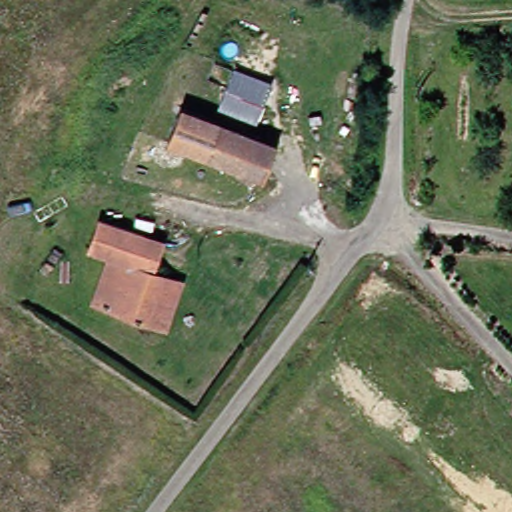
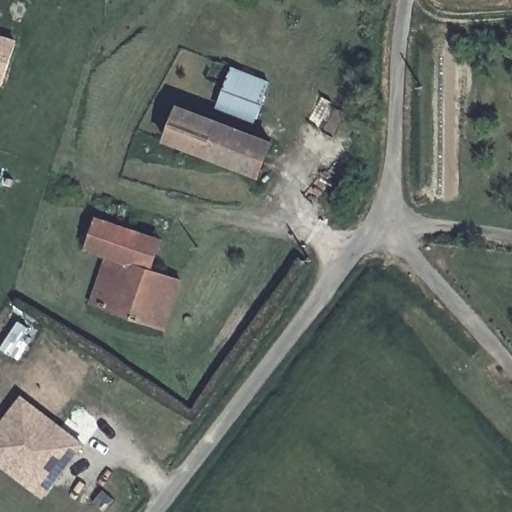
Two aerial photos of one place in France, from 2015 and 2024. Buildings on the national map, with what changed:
new [(1,84),(0,84),(0,38),(14,43),(1,84)]
unchanged [(179,106),(214,118),(232,68),(269,82),(252,134),(275,142),(259,179),(165,143),(179,106)]
unchanged [(150,325),(135,319),(84,298),(101,254),(80,245),(92,215),(136,233),(147,238),(137,265),(153,271),(169,278),(150,325)]
new [(80,447),(40,494),(0,460),(0,423),(22,397),(80,447)]

